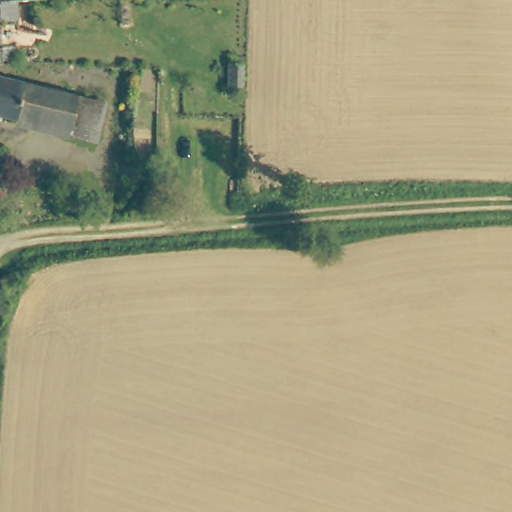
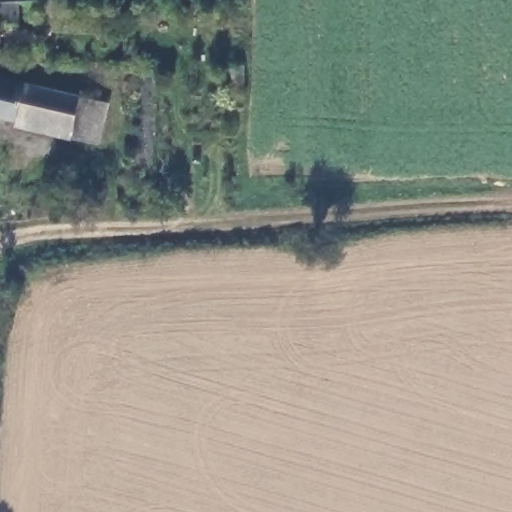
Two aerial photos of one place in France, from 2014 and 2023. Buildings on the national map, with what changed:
unchanged [(0,57),(0,40),(3,57),(0,57)]
unchanged [(21,124),(0,119),(0,79),(28,86),(21,124)]
unchanged [(75,96),(85,99),(76,140),(20,128),(21,124),(28,86),(75,96)]
unchanged [(111,104),(99,145),(76,140),(85,99),(111,104)]

